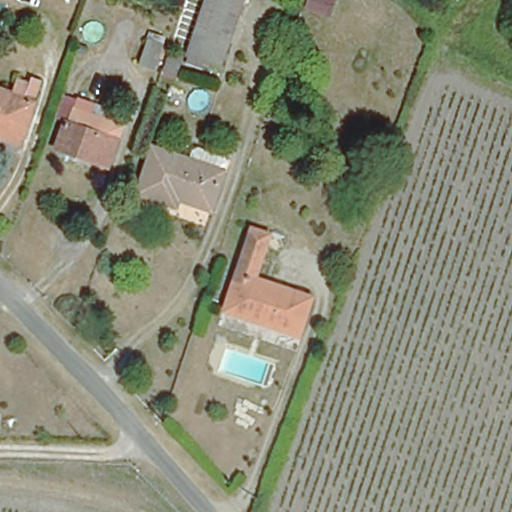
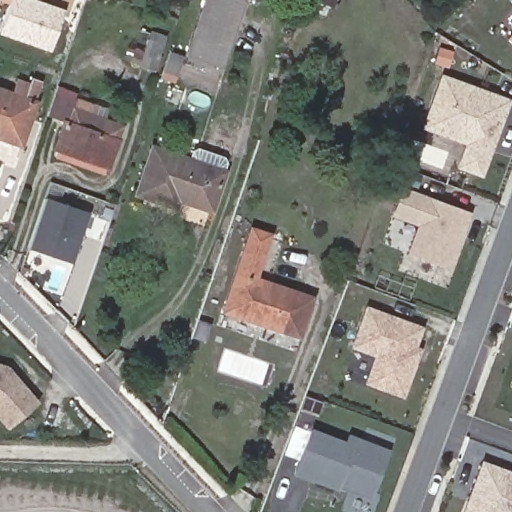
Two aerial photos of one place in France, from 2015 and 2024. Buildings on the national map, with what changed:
unchanged [(0,2),(0,0),(15,0),(12,6),(0,2)]
new [(50,51),(2,34),(12,6),(15,0),(38,0),(64,9),(50,51)]
unchanged [(205,0),(242,0),(220,64),(187,53),(205,0)]
unchanged [(305,10),(309,0),(337,0),(331,19),(305,10)]
unchanged [(154,69),(140,64),(149,39),(162,44),(154,69)]
unchanged [(163,74),(170,53),(182,57),(175,77),(163,74)]
new [(448,77),(512,100),(512,106),(486,175),(464,167),(473,144),(444,133),(449,119),(435,114),(448,77)]
unchanged [(15,144),(0,139),(0,90),(6,92),(10,79),(25,84),(26,80),(36,83),(15,144)]
new [(47,115),(56,86),(76,93),(75,97),(107,107),(104,117),(123,124),(118,140),(99,134),(104,120),(74,110),(70,124),(63,121),(47,115)]
unchanged [(54,150),(63,121),(70,124),(74,110),(104,120),(99,134),(118,140),(109,168),(54,150)]
unchanged [(194,149),(199,147),(223,155),(226,163),(210,209),(177,199),(175,205),(137,192),(152,147),(190,160),(194,149)]
new [(476,214),(455,270),(412,254),(422,226),(398,216),(406,189),(476,214)]
new [(73,263),(29,248),(45,197),(90,212),(73,263)]
unchanged [(255,272),(311,291),(298,331),(222,305),(250,222),(270,230),(255,272)]
new [(371,310),(424,331),(413,356),(420,359),(405,397),(370,383),(380,356),(357,347),(371,310)]
new [(0,422),(0,363),(9,365),(39,402),(5,430),(0,422)]
new [(505,388),(512,371),(512,391),(505,388)]
new [(371,498),(340,486),(337,492),(293,475),(310,427),(343,440),(346,433),(390,450),(371,498)]
new [(487,465),(512,474),(512,512),(470,512),(487,465)]

